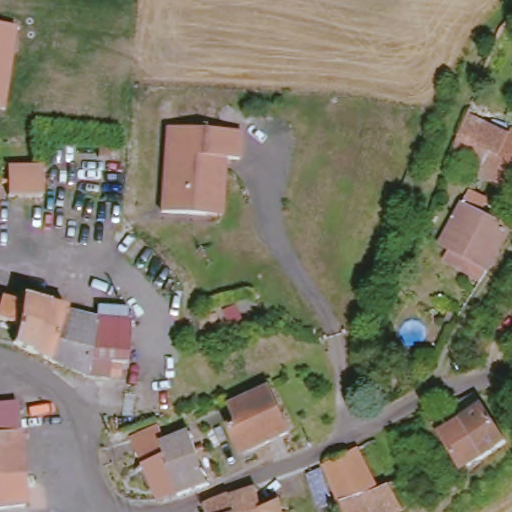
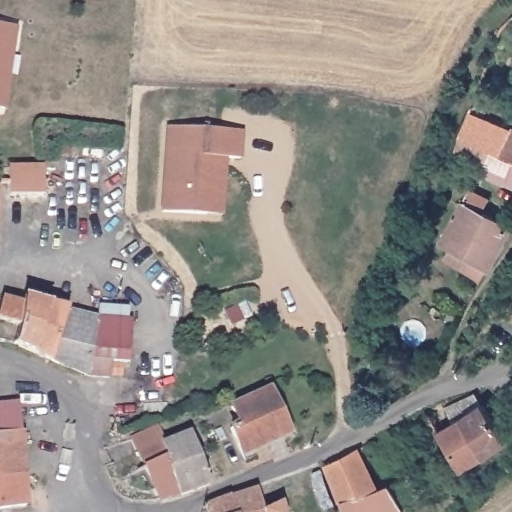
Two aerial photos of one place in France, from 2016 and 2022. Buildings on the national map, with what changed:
unchanged [(14,27),(3,110),(0,110),(0,25),(14,27)]
unchanged [(207,217),(164,212),(174,127),(248,136),(244,164),(229,162),(222,219),(207,217)]
unchanged [(459,127),(512,144),(512,193),(443,163),(459,127)]
unchanged [(39,194),(9,197),(9,184),(10,168),(39,167),(39,194)]
unchanged [(507,231),(484,276),(439,249),(462,204),(507,231)]
unchanged [(64,308),(64,312),(92,318),(83,378),(9,344),(13,324),(0,324),(0,303),(17,304),(19,297),(64,308)]
unchanged [(119,368),(116,381),(109,379),(104,379),(104,382),(83,378),(92,318),(108,322),(130,327),(124,364),(123,369),(119,368)]
unchanged [(290,433),(243,455),(230,429),(241,424),(233,408),(269,391),(290,433)]
unchanged [(457,472),(433,434),(455,420),(449,406),(477,392),(486,404),(508,441),(457,472)]
unchanged [(15,429),(0,431),(0,403),(15,401),(15,429)]
unchanged [(163,444),(187,437),(202,487),(173,496),(157,499),(139,470),(133,434),(159,426),(163,444)]
unchanged [(16,507),(0,508),(0,431),(15,429),(16,507)]
unchanged [(323,464),(353,448),(373,489),(339,503),(323,464)]
unchanged [(373,489),(385,485),(400,510),(395,512),(341,512),(339,503),(373,489)]
unchanged [(200,507),(228,496),(253,489),(258,509),(277,503),(279,512),(201,512),(200,507)]

